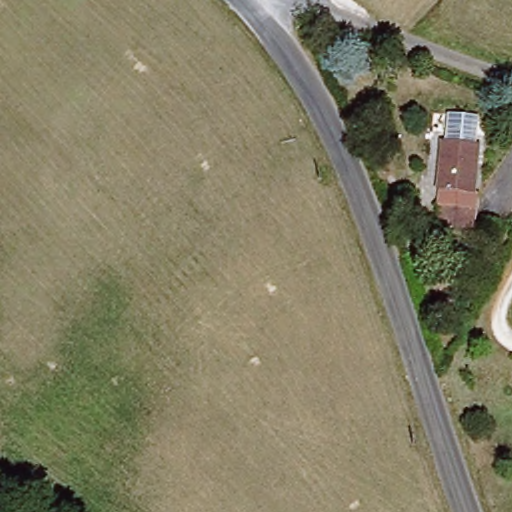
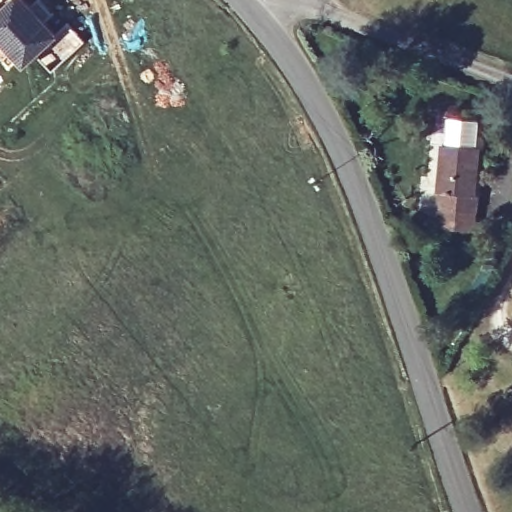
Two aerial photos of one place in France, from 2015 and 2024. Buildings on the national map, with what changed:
new [(57,34),(68,25),(82,41),(50,71),(35,54),(22,64),(0,41),(0,0),(28,0),(57,34)]
unchanged [(435,231),(437,212),(440,188),(432,188),(439,141),(475,149),(471,195),(477,195),(475,217),(472,236),(435,231)]

